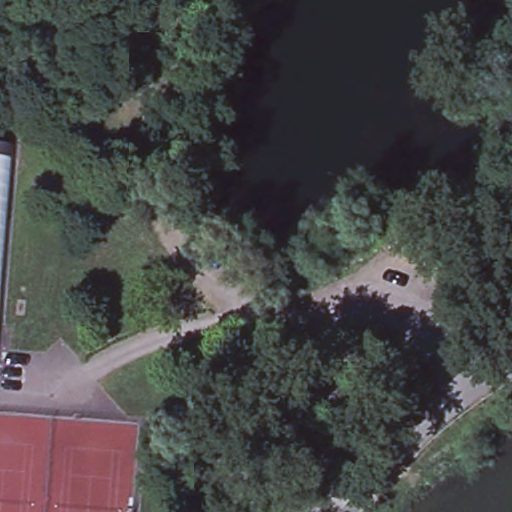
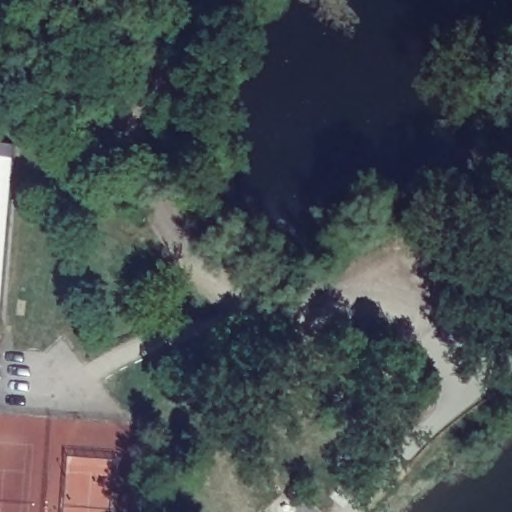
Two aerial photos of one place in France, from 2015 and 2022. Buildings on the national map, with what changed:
unchanged [(17,146),(2,342),(0,342),(0,144),(17,146)]

